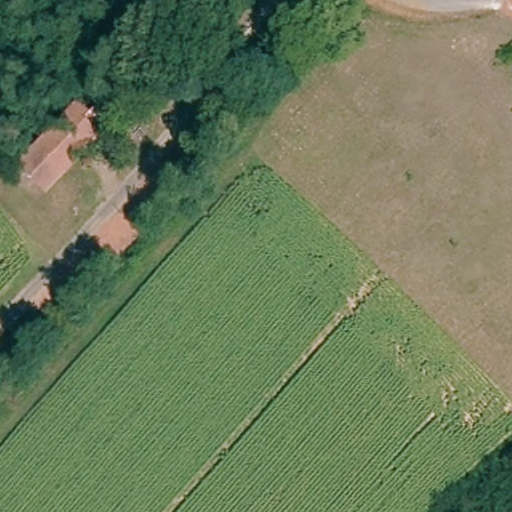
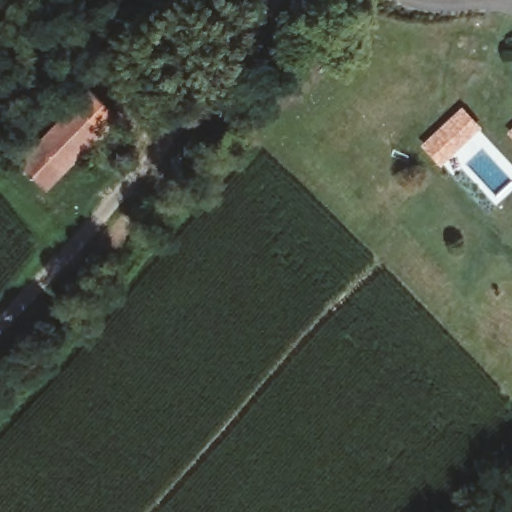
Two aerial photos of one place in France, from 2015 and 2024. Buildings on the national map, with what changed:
unchanged [(33,158),(83,104),(96,115),(107,126),(73,165),(56,183),(33,158)]
new [(438,163),(422,145),(457,113),(460,116),(464,112),(479,124),(438,163)]
new [(512,128),(512,138),(506,132),(512,128)]

